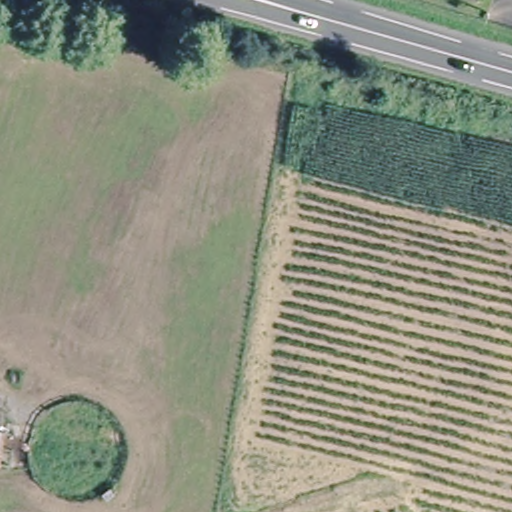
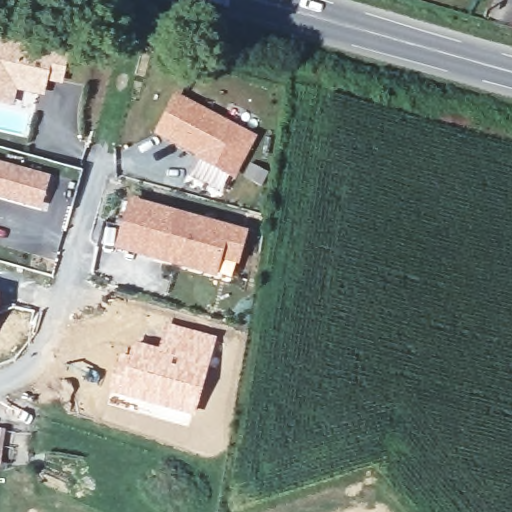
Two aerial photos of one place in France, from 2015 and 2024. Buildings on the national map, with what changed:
new [(63,85),(48,83),(44,96),(18,90),(14,108),(0,106),(0,30),(71,44),(63,85)]
new [(254,138),(234,178),(195,160),(199,156),(154,134),(178,93),(254,138)]
new [(42,208),(0,198),(0,161),(50,176),(42,208)]
new [(247,230),(239,264),(222,259),(217,277),(114,250),(128,197),(247,230)]
new [(134,340),(159,347),(169,322),(217,336),(193,415),(112,392),(134,340)]
new [(0,456),(0,428),(4,429),(0,456)]

